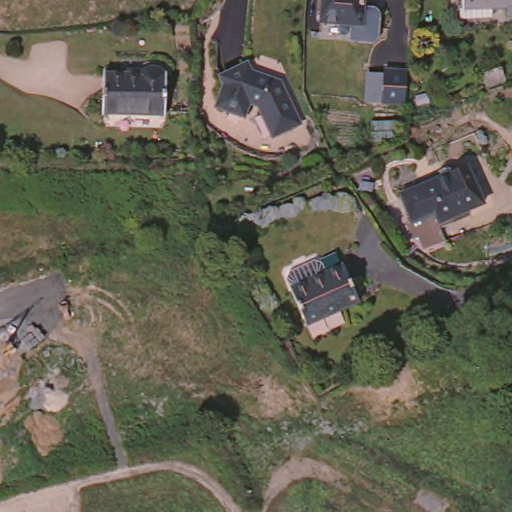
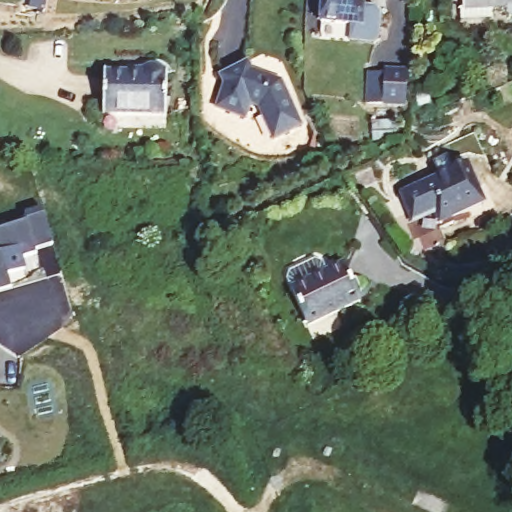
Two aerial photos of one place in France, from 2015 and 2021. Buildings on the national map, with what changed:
unchanged [(365,50),(343,48),(344,39),(345,29),(316,26),(319,0),(361,0),(359,14),(374,16),(371,42),(371,46),(365,50)]
unchanged [(507,19),(462,20),(462,0),(512,0),(512,27),(508,27),(507,19)]
unchanged [(298,132),(271,143),(258,111),(249,107),(243,121),(216,109),(225,88),(222,79),(249,68),(252,77),(280,89),(298,132)]
new [(381,68),(403,69),(402,101),(380,100),(381,68)]
unchanged [(134,77),(141,71),(145,70),(151,70),(156,73),(158,75),(161,75),(163,117),(99,119),(98,79),(134,77)]
unchanged [(488,83),(469,89),(465,78),(484,71),(488,83)]
unchanged [(495,208),(451,227),(447,217),(428,225),(425,227),(413,200),(416,198),(435,190),(435,189),(478,170),(495,208)]
new [(41,206),(44,213),(53,244),(37,248),(38,253),(23,257),(26,270),(10,275),(13,286),(0,290),(0,227),(27,219),(25,212),(41,206)]
unchanged [(311,329),(295,292),(346,268),(363,306),(311,329)]

